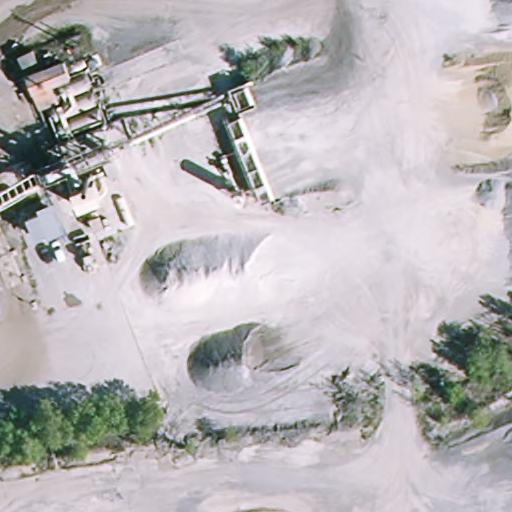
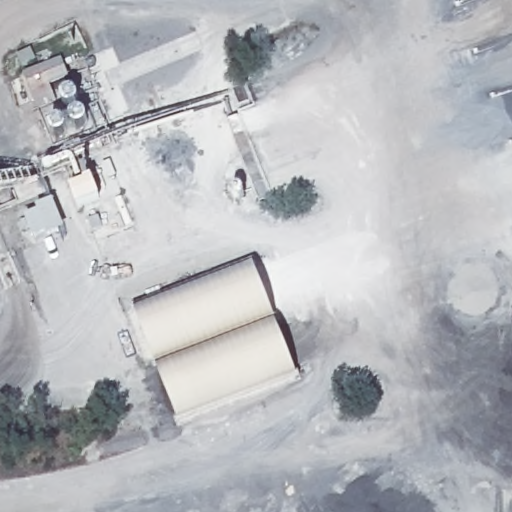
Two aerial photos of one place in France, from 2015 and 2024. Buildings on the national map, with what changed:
unchanged [(69,79),(84,75),(99,119),(58,136),(48,106),(37,110),(22,73),(60,58),(69,79)]
unchanged [(73,192),(100,183),(109,203),(82,213),(73,192)]
unchanged [(25,219),(53,210),(62,233),(34,241),(25,219)]
new [(132,310),(256,264),(300,378),(177,426),(132,310)]

